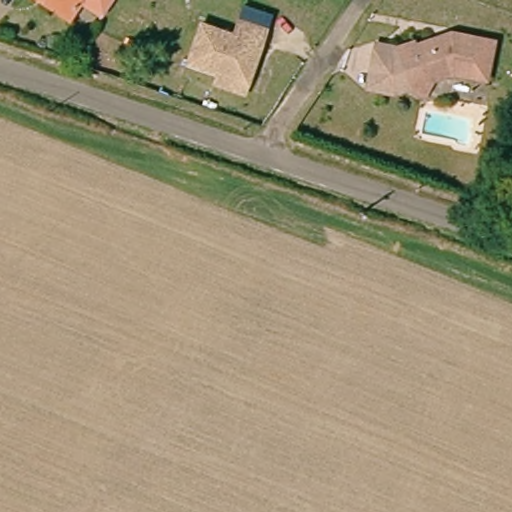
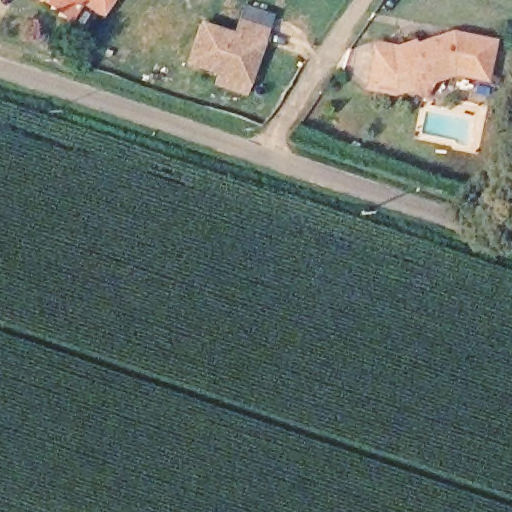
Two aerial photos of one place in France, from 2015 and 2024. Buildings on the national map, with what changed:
unchanged [(48,0),(82,0),(73,15),(48,0)]
unchanged [(88,0),(109,0),(103,9),(88,0)]
unchanged [(215,77),(218,68),(188,59),(200,20),(234,30),(238,15),(265,23),(247,77),(244,87),(215,77)]
unchanged [(421,37),(422,40),(455,29),(455,33),(464,33),(465,27),(499,34),(494,71),(461,67),(460,60),(442,65),(432,87),(417,83),(404,44),(421,37)]
unchanged [(417,83),(403,89),(377,85),(383,41),(404,44),(417,83)]

